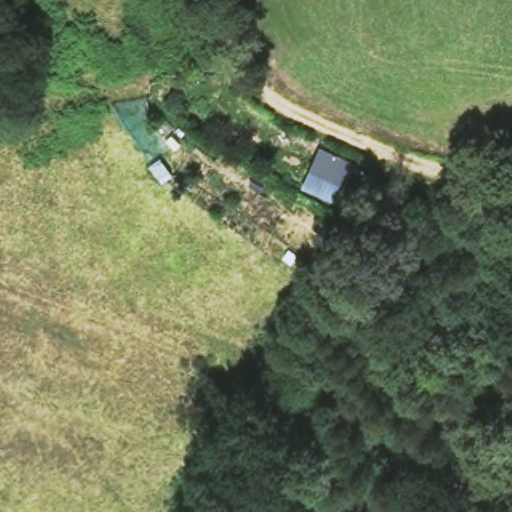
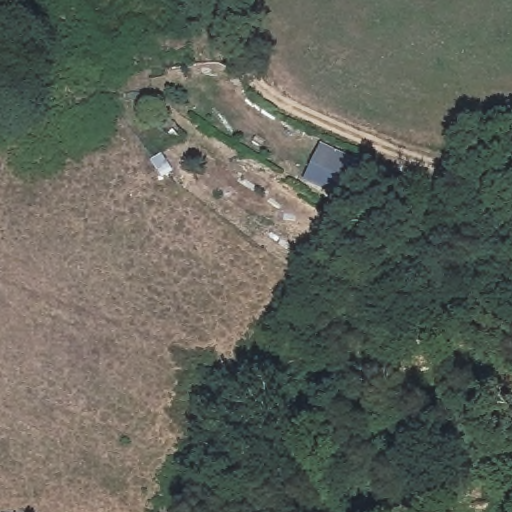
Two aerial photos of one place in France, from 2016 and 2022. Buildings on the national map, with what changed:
unchanged [(320,144),(364,164),(346,204),(303,185),(320,144)]

